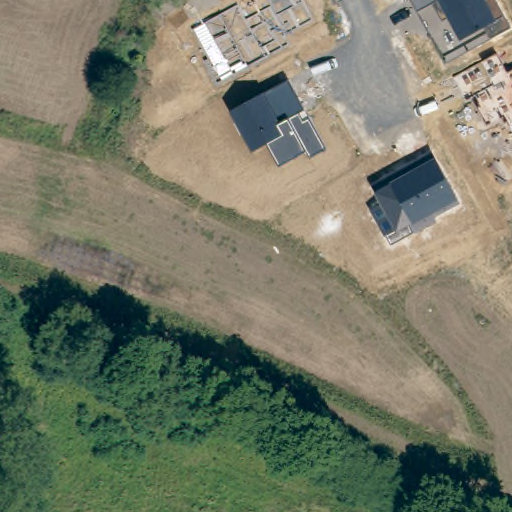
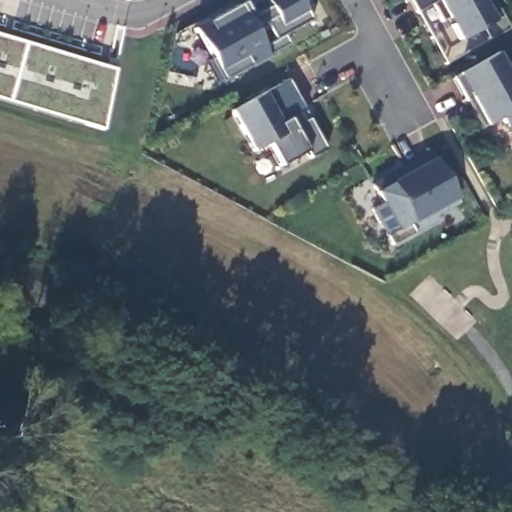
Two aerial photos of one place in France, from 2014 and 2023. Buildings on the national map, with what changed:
unchanged [(283,36),(287,44),(267,56),(247,66),(217,84),(205,61),(209,59),(192,28),(205,20),(206,24),(243,2),(247,11),(270,1),(269,0),(301,0),(312,20),(283,36)]
unchanged [(491,40),(483,27),(460,40),(449,20),(442,23),(433,5),(417,14),(411,0),(495,0),(511,30),(491,40)]
new [(0,99),(0,35),(115,70),(102,130),(0,99)]
unchanged [(512,69),(512,124),(485,139),(455,84),(506,59),(512,69)]
unchanged [(310,159),(307,151),(280,166),(267,144),(253,151),(232,111),(263,95),(289,81),(327,150),(310,159)]
unchanged [(376,210),(385,206),(377,192),(372,184),(432,152),(462,202),(436,216),(438,222),(392,245),(376,210)]

